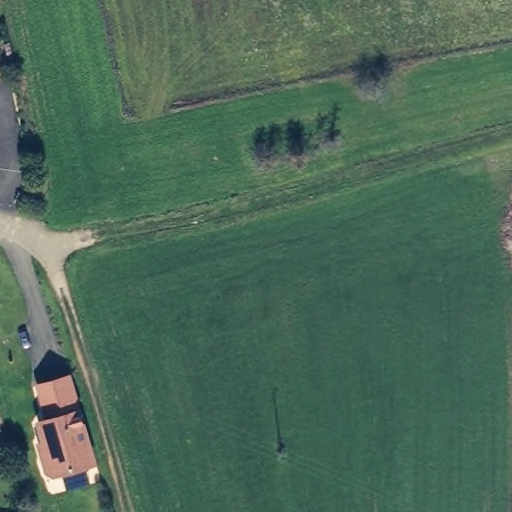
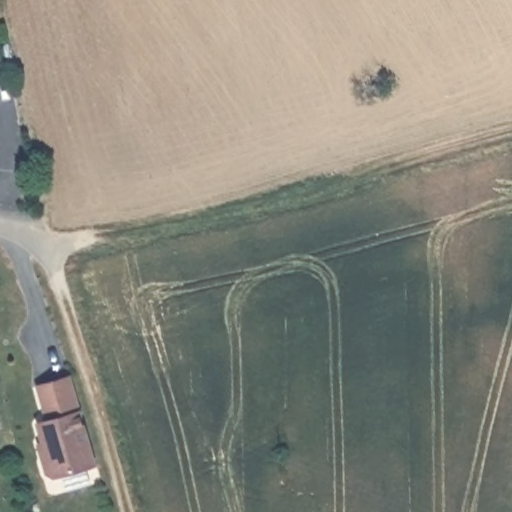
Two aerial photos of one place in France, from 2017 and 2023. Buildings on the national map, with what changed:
unchanged [(46,441),(40,421),(50,418),(40,383),(70,375),(95,462),(55,474),(49,470),(45,458),(41,442),(46,441)]

